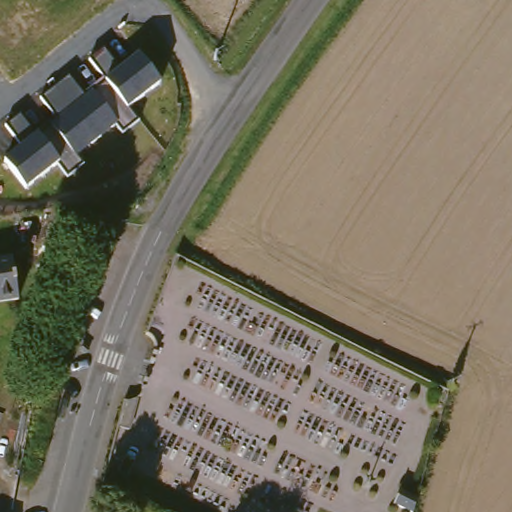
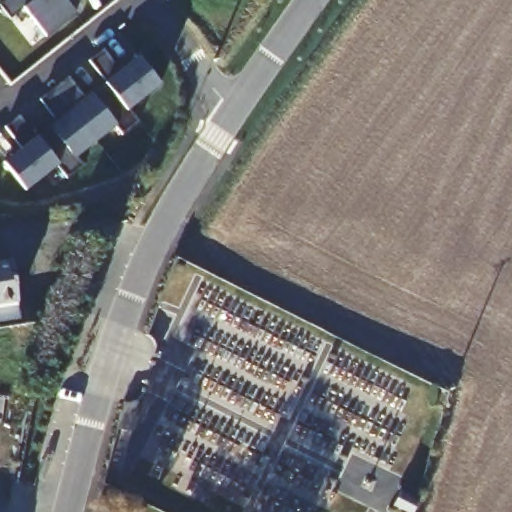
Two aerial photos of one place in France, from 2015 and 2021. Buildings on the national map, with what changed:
new [(76,15),(47,38),(23,10),(10,19),(0,6),(0,5),(6,0),(64,0),(76,15)]
unchanged [(129,108),(140,122),(122,135),(115,126),(74,159),(82,167),(68,178),(57,164),(27,189),(2,156),(18,143),(6,128),(22,116),(46,144),(60,134),(52,124),(57,120),(41,99),(69,77),(83,95),(104,81),(91,63),(107,51),(120,67),(137,54),(160,82),(129,108)]
unchanged [(0,302),(0,258),(11,257),(12,267),(16,301),(0,302)]

